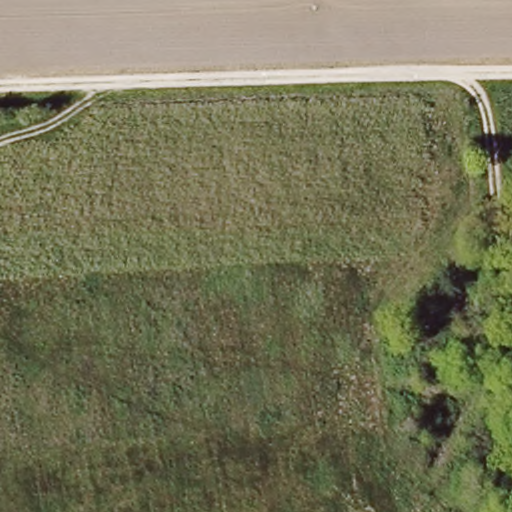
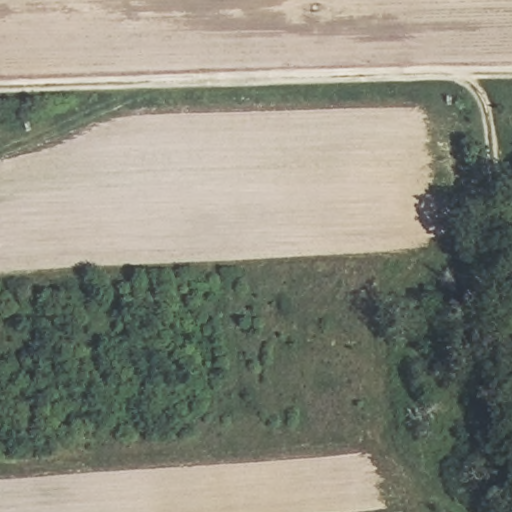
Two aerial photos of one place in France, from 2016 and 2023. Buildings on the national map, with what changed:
[]

